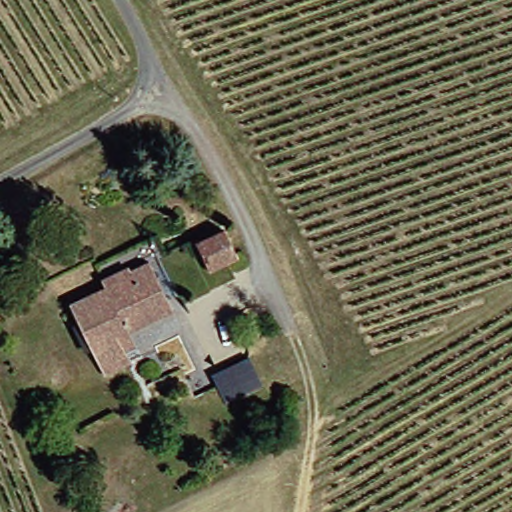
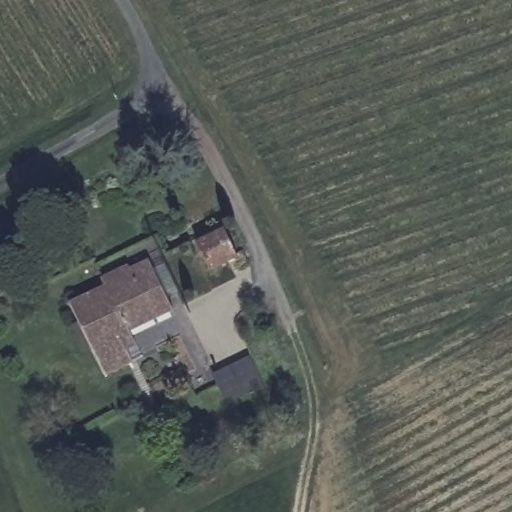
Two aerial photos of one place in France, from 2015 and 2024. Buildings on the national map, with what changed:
unchanged [(233,230),(244,257),(217,271),(205,244),(233,230)]
unchanged [(187,325),(130,348),(141,374),(113,384),(83,311),(103,303),(105,306),(124,299),(114,273),(174,249),(182,269),(167,275),(187,325)]
unchanged [(208,386),(242,372),(255,404),(221,419),(208,386)]

